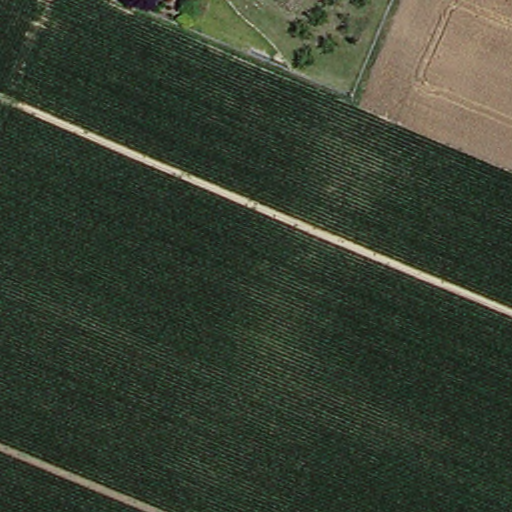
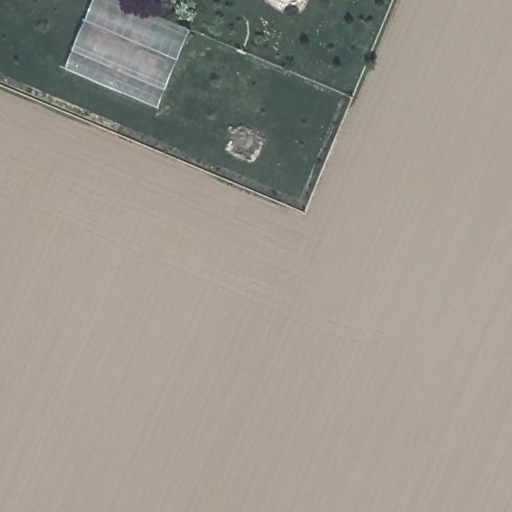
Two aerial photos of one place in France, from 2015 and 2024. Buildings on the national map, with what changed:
new [(162,107),(68,66),(95,0),(124,0),(193,29),(162,107)]

